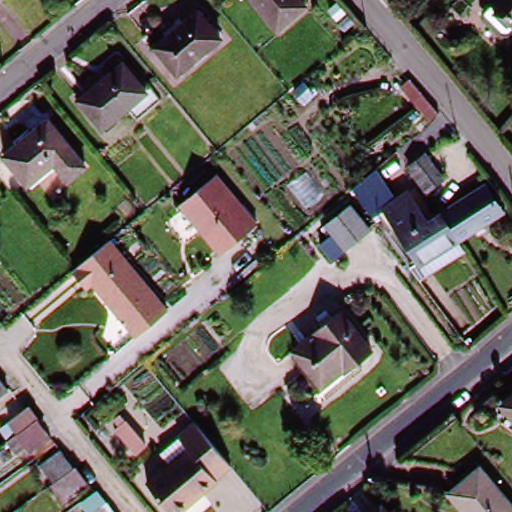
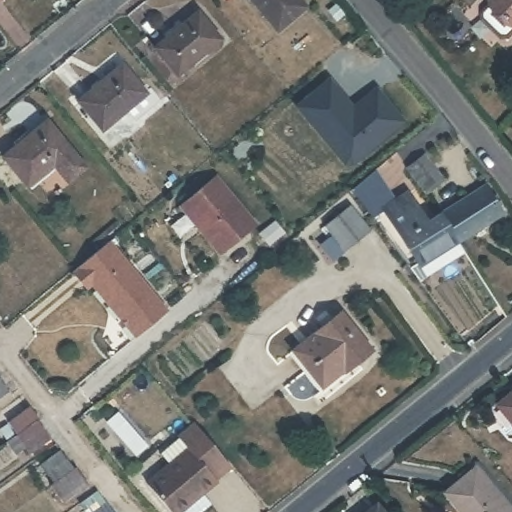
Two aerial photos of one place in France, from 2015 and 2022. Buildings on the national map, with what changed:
unchanged [(305,10),(277,35),(249,0),(297,0),(305,10)]
unchanged [(480,22),(480,12),(489,5),(494,0),(512,0),(512,39),(509,41),(501,41),(480,22)]
unchanged [(343,19),(337,24),(329,14),(335,9),(343,19)]
unchanged [(198,12),(220,39),(179,74),(156,46),(198,12)]
unchanged [(122,64),(147,92),(102,130),(78,100),(122,64)]
new [(349,102),(353,108),(346,115),(378,89),(404,121),(351,164),(344,164),(297,105),(330,79),(349,102)]
unchanged [(46,123),(85,170),(67,185),(52,167),(26,189),(2,159),(46,123)]
unchanged [(423,157),(441,180),(425,194),(406,170),(423,157)]
unchanged [(186,207),(217,180),(270,244),(239,270),(186,207)]
unchanged [(421,285),(410,270),(420,263),(385,212),(373,222),(352,194),(366,183),(387,210),(408,196),(428,225),(440,215),(449,229),(457,241),(422,266),(430,279),(421,285)]
unchanged [(483,185),(500,211),(457,241),(449,229),(440,215),(483,185)]
unchanged [(351,203),(372,230),(345,251),(323,224),(351,203)]
unchanged [(340,251),(331,259),(319,245),(329,237),(340,251)]
unchanged [(171,312),(137,342),(73,272),(112,248),(171,312)]
unchanged [(339,308),(371,346),(357,360),(361,365),(327,395),(290,350),(339,308)]
unchanged [(9,392),(0,399),(0,380),(9,392)]
unchanged [(512,423),(500,408),(512,399),(512,423)]
unchanged [(12,443),(11,444),(2,433),(32,410),(41,421),(40,422),(54,440),(35,456),(29,449),(22,455),(12,443)]
unchanged [(120,415),(125,420),(119,425),(115,420),(120,415)]
unchanged [(216,481),(178,512),(169,512),(141,478),(163,460),(156,450),(175,435),(173,433),(189,418),(227,465),(212,477),(216,481)]
unchanged [(146,445),(136,454),(116,431),(126,422),(146,445)]
unchanged [(86,482),(61,501),(47,484),(55,479),(42,462),(57,450),(71,467),(73,465),(86,482)]
unchanged [(512,511),(512,512),(465,512),(449,493),(478,470),(512,511)]
unchanged [(110,512),(88,512),(101,501),(110,512)]
unchanged [(381,512),(377,512),(379,510),(381,512)]

